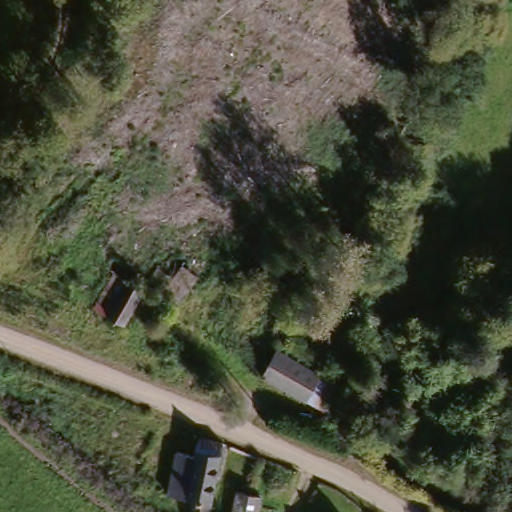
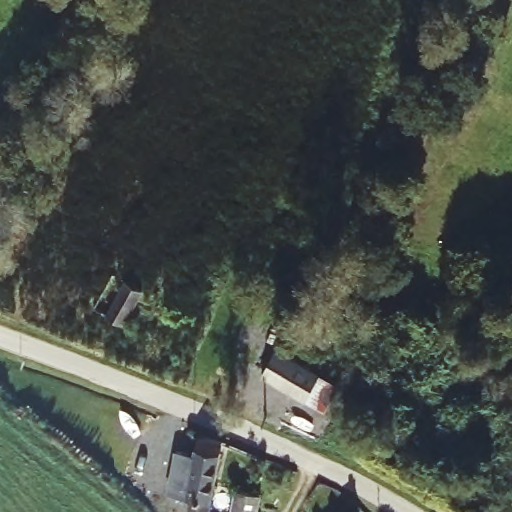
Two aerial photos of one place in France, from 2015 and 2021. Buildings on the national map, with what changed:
unchanged [(173,309),(151,288),(161,277),(182,294),(173,309)]
unchanged [(128,327),(100,317),(113,284),(143,288),(128,327)]
unchanged [(322,383),(311,409),(270,391),(266,389),(278,362),(292,369),(322,383)]
unchanged [(214,442),(214,450),(215,512),(192,512),(192,504),(178,504),(177,462),(176,439),(214,442)]
unchanged [(252,498),(253,512),(230,512),(230,498),(240,498),(252,498)]

